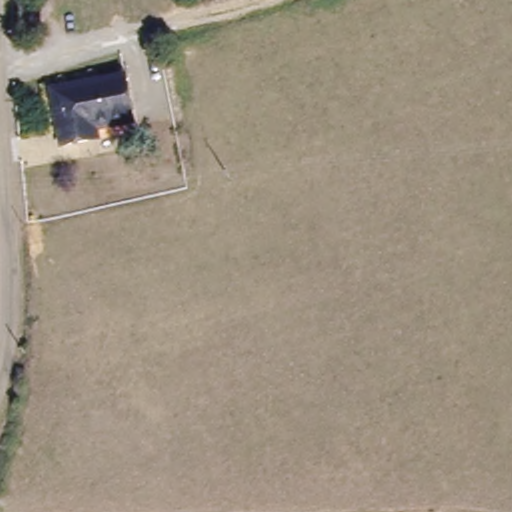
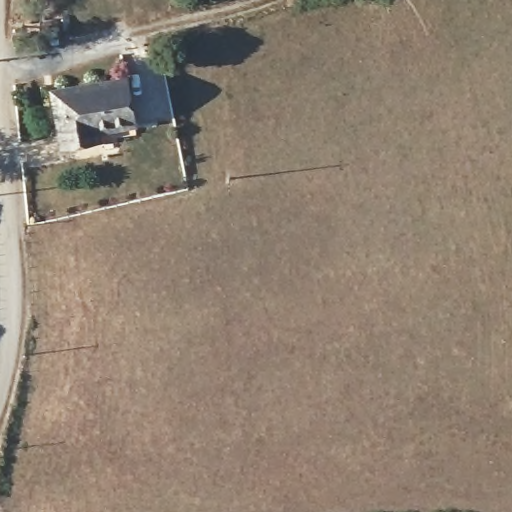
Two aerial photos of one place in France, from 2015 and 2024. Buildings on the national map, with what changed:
unchanged [(90,145),(66,150),(54,98),(103,85),(124,80),(135,121),(113,126),(102,129),(104,141),(90,145)]

